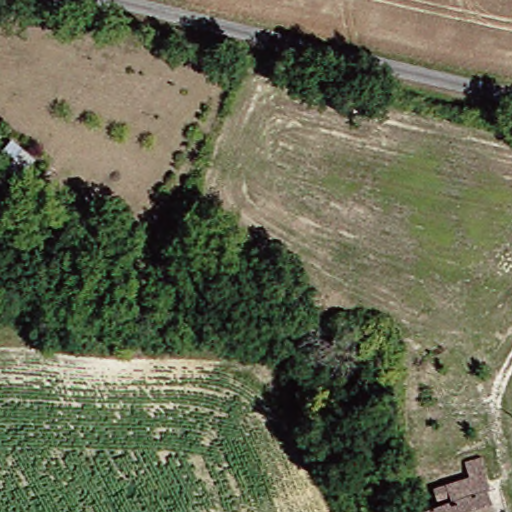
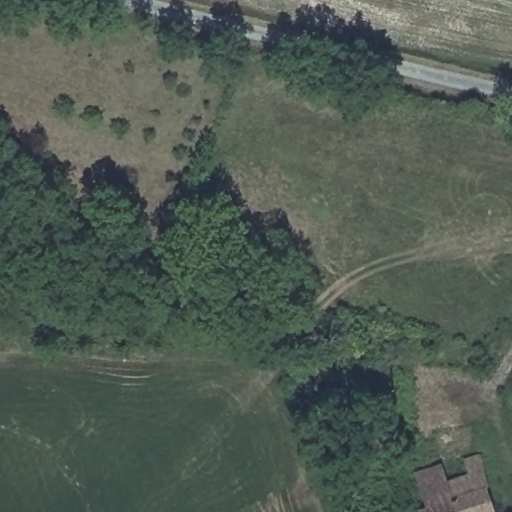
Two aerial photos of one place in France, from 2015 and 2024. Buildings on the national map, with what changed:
unchanged [(17,132),(45,155),(30,176),(0,154),(0,150),(17,132)]
unchanged [(455,483),(476,477),(472,461),(489,457),(495,491),(500,512),(437,512),(449,508),(440,488),(455,483)]

